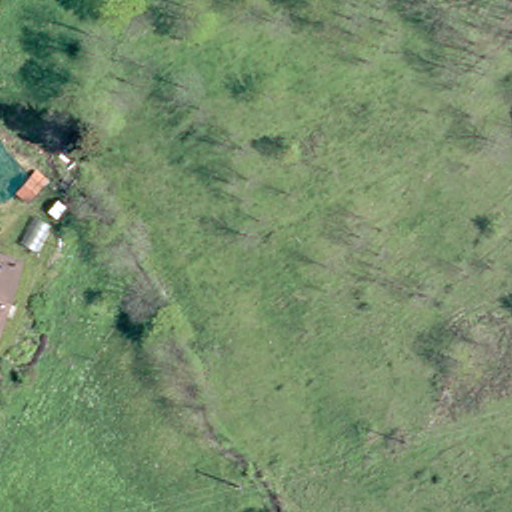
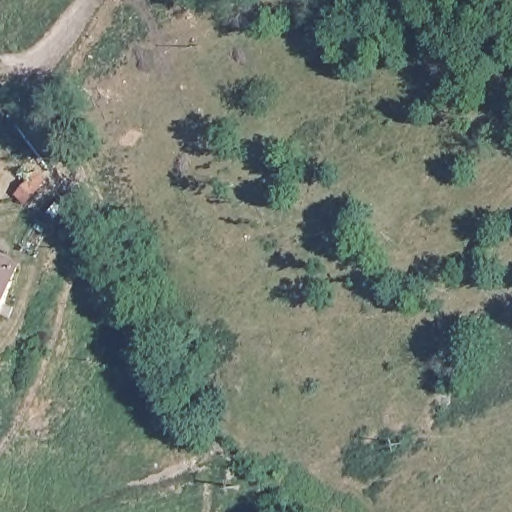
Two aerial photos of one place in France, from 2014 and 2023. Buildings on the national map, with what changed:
unchanged [(24,271),(0,310),(0,256),(24,271)]

